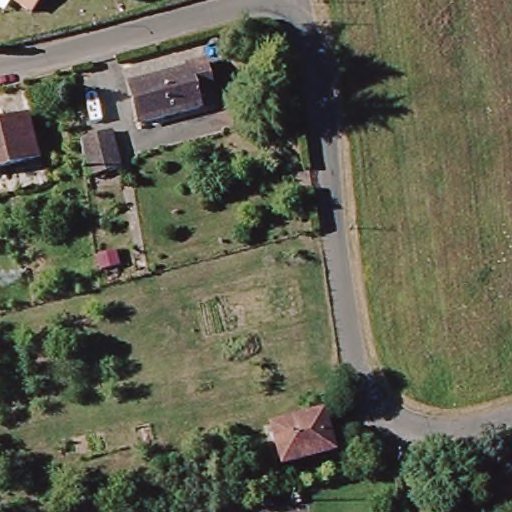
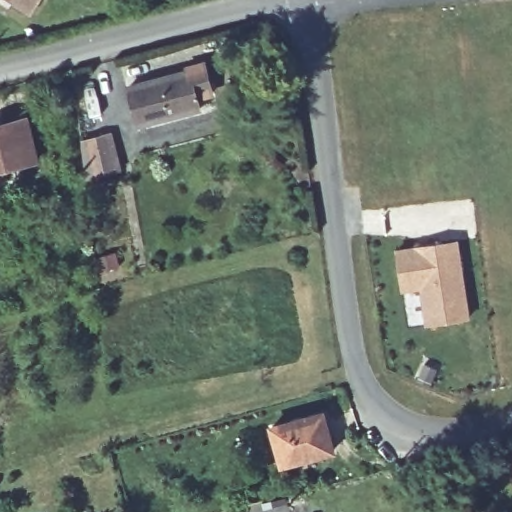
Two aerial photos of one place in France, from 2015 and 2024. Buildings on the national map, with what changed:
unchanged [(9,6),(12,0),(11,0),(38,0),(28,18),(9,6)]
unchanged [(139,125),(129,86),(188,70),(187,68),(205,63),(213,92),(198,96),(201,109),(139,125)]
unchanged [(26,119),(36,159),(0,168),(0,125),(26,119)]
unchanged [(86,179),(81,140),(111,134),(120,171),(86,179)]
new [(459,242),(472,318),(430,324),(424,287),(406,290),(400,250),(459,242)]
unchanged [(282,464),(272,427),(324,412),(334,450),(282,464)]

